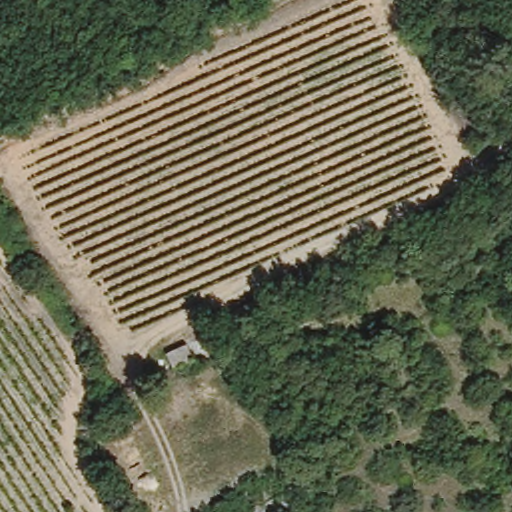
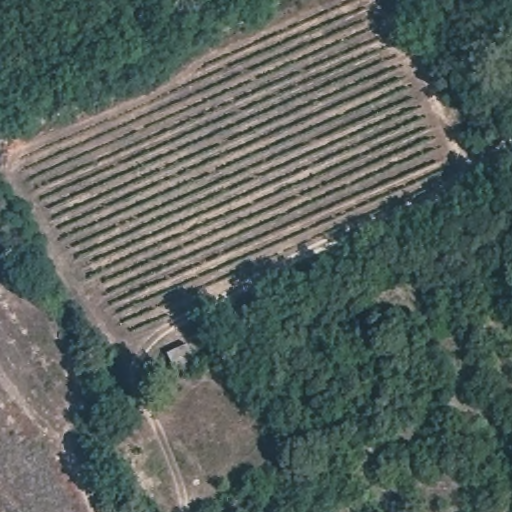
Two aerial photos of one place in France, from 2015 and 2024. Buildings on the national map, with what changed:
unchanged [(176,363),(169,347),(186,341),(196,357),(176,363)]

